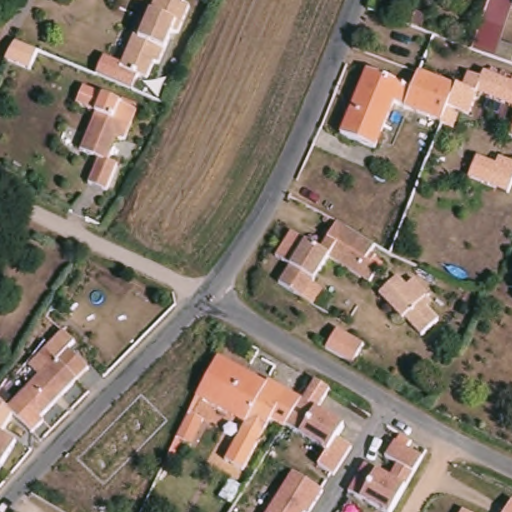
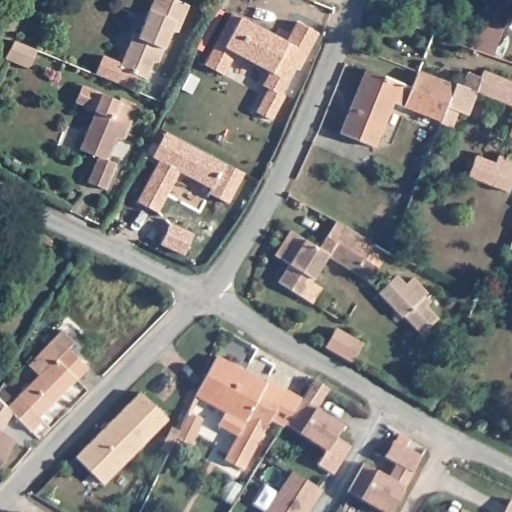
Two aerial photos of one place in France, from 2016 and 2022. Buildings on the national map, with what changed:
unchanged [(172,29),(160,60),(154,60),(147,76),(114,63),(130,27),(134,29),(146,0),(183,0),(190,3),(179,29),(172,29)]
new [(512,0),(512,10),(499,44),(512,49),(512,59),(510,64),(475,49),(493,0),(512,0)]
new [(233,11),(287,40),(298,19),(319,30),(299,66),(296,65),(281,91),(284,93),(271,117),(257,109),(270,85),(264,82),(271,69),(235,49),(224,71),(206,61),(233,11)]
new [(14,34),(35,44),(27,63),(3,52),(14,34)]
unchanged [(391,98),(372,141),(338,127),(365,64),(410,82),(415,67),(453,81),(445,99),(437,118),(391,98)]
unchanged [(445,99),(453,81),(460,87),(463,73),(477,79),(481,72),(512,83),(512,107),(475,94),(467,119),(458,114),(452,130),(433,121),(436,117),(437,118),(445,99)]
unchanged [(119,98),(119,100),(136,108),(124,134),(116,134),(107,156),(115,160),(105,185),(87,178),(96,157),(79,149),(95,109),(76,100),(84,83),(119,98)]
unchanged [(512,119),(512,141),(505,137),(512,119)]
new [(160,158),(152,154),(166,129),(244,172),(227,201),(208,191),(210,187),(179,169),(157,209),(137,199),(160,158)]
unchanged [(495,156),(512,163),(512,179),(505,198),(464,180),(474,159),(490,164),(495,156)]
unchanged [(314,304),(303,299),(279,285),(290,267),(275,259),(288,234),(318,250),(334,221),(373,242),(369,251),(373,253),(370,260),(377,264),(366,283),(325,260),(312,284),(311,284),(322,290),(314,304)]
unchanged [(410,275),(425,290),(422,294),(427,299),(423,303),(436,315),(420,332),(402,314),(400,316),(375,292),(393,274),(402,283),(410,275)]
unchanged [(51,409),(40,421),(15,396),(26,384),(27,384),(50,362),(39,352),(50,341),(70,320),(81,332),(76,337),(97,358),(48,406),(51,409)]
unchanged [(331,324),(359,340),(347,359),(321,344),(331,324)]
unchanged [(225,357),(264,375),(265,373),(284,382),(244,464),(225,456),(244,417),(205,398),(225,357)]
unchanged [(282,386),(302,397),(313,377),(330,387),(318,407),(345,424),(337,436),(351,445),(335,474),(319,464),(327,449),(285,424),(283,428),(266,419),(282,386)]
new [(144,394),(170,420),(106,485),(80,459),(144,394)]
unchanged [(202,404),(190,431),(175,424),(184,404),(187,398),(202,404)]
unchanged [(14,440),(0,459),(0,431),(14,440)]
unchanged [(362,498),(350,492),(366,464),(380,470),(390,477),(397,462),(387,456),(400,433),(410,439),(406,446),(422,454),(391,512),(388,512),(362,498)]
unchanged [(310,512),(265,512),(292,470),(323,489),(310,512)]
unchanged [(508,495),(512,497),(512,512),(498,512),(508,495)]

